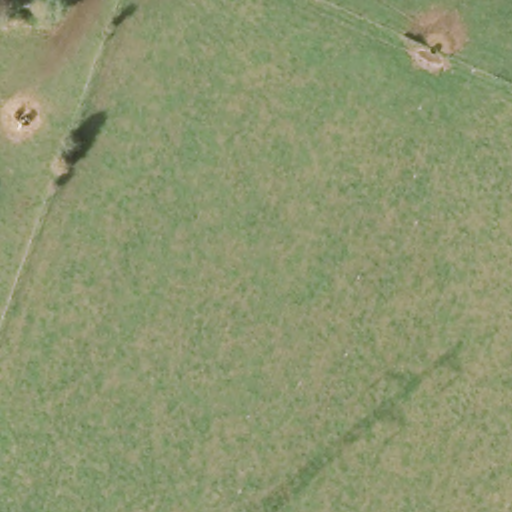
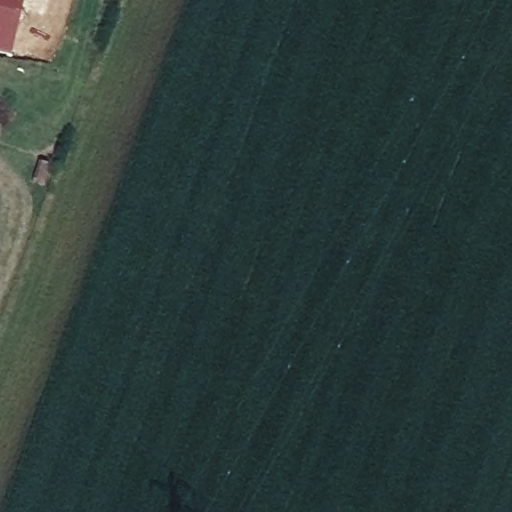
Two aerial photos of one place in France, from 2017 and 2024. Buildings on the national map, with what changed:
new [(0,55),(0,0),(26,0),(10,58),(0,55)]

